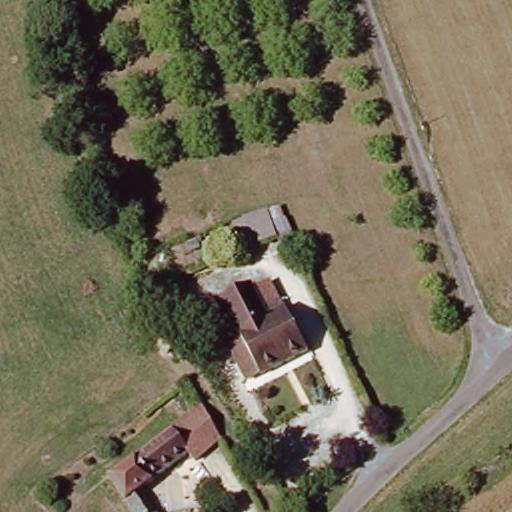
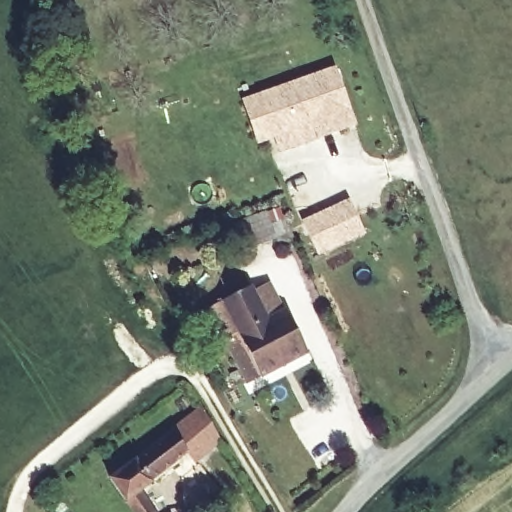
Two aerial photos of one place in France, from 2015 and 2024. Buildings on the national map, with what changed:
new [(280,152),(274,139),(258,145),(243,99),(335,67),(356,123),(280,152)]
new [(365,234),(318,256),(303,221),(348,200),(365,234)]
unchanged [(266,217),(279,241),(257,254),(243,229),(266,217)]
unchanged [(230,343),(211,309),(255,287),(274,322),(291,315),(311,352),(266,377),(253,386),(230,343)]
unchanged [(116,478),(208,407),(230,442),(199,466),(193,457),(147,491),(162,512),(138,512),(116,478)]

